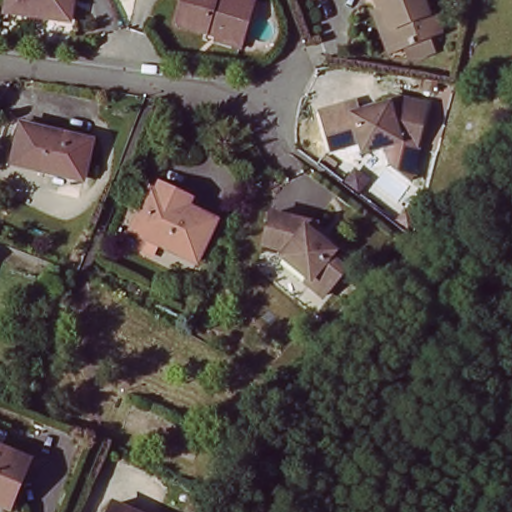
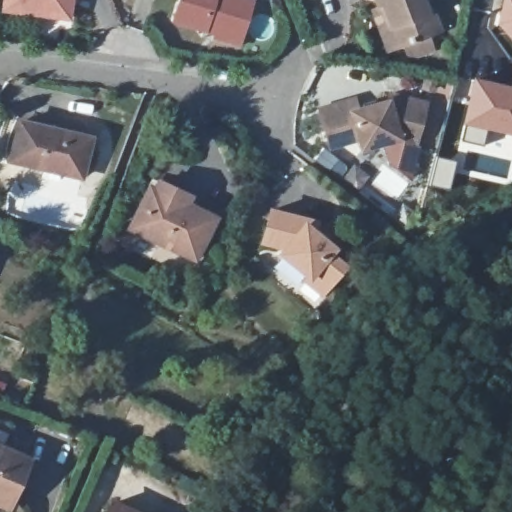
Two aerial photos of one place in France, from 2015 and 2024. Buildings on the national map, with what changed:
unchanged [(75,2),(74,22),(9,15),(11,0),(71,0),(71,1),(75,2)]
unchanged [(174,21),(180,0),(248,0),(252,1),(237,48),(212,40),(214,34),(206,31),(174,21)]
unchanged [(405,54),(401,45),(392,48),(385,51),(369,11),(381,6),(379,0),(421,0),(426,14),(433,11),(440,30),(428,35),(425,36),(431,51),(415,56),(405,54)]
new [(512,41),(511,40),(497,25),(502,0),(512,0),(512,41)]
new [(512,85),(512,135),(485,129),(482,145),(458,141),(470,76),(512,85)]
unchanged [(330,147),(319,109),(355,99),(358,110),(364,109),(362,104),(374,101),(376,105),(387,103),(389,94),(426,104),(414,146),(397,142),(397,140),(362,150),(359,139),(343,144),(330,147)]
unchanged [(38,172),(5,164),(15,126),(85,142),(77,175),(76,181),(38,172)]
new [(435,156),(455,160),(449,188),(429,184),(435,156)]
unchanged [(153,192),(157,184),(188,198),(184,206),(213,219),(194,262),(137,234),(129,231),(139,209),(148,189),(153,192)]
unchanged [(286,252),(288,249),(266,243),(274,213),(319,224),(317,234),(337,250),(332,256),(348,269),(325,297),(309,284),(312,280),(283,256),(286,252)]
unchanged [(2,450),(27,461),(7,512),(0,512),(0,431),(7,433),(2,450)]
unchanged [(110,512),(114,502),(137,512),(110,512)]

